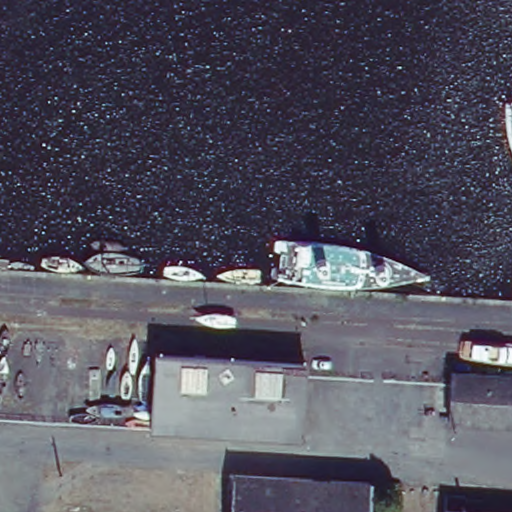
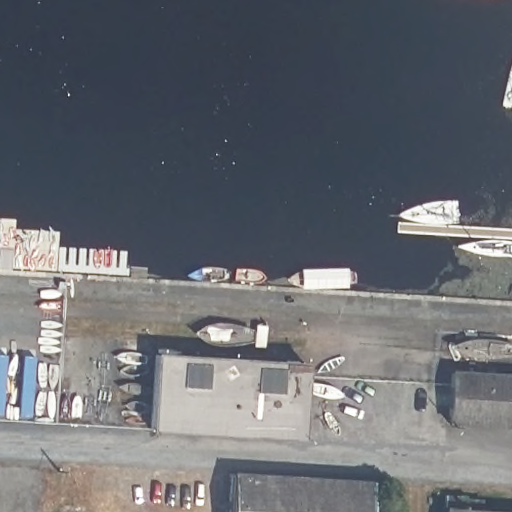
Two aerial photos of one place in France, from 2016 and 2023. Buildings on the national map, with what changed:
unchanged [(309,362),(302,437),(153,425),(157,350),(309,362)]
unchanged [(512,424),(453,420),(457,369),(512,374),(512,424)]
unchanged [(371,483),(369,512),(226,512),(230,471),(371,483)]
unchanged [(480,502),(479,512),(446,512),(447,498),(464,498),(463,501),(480,502)]

